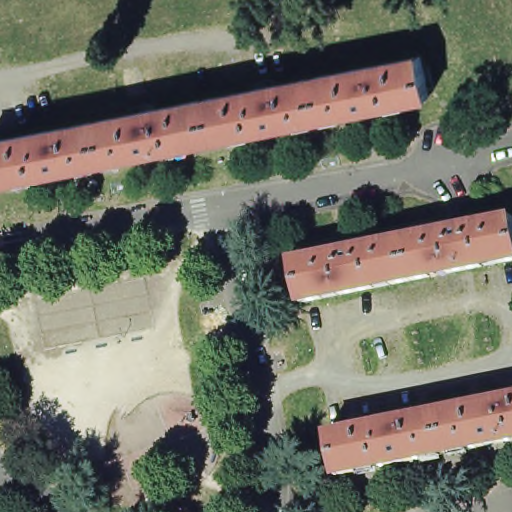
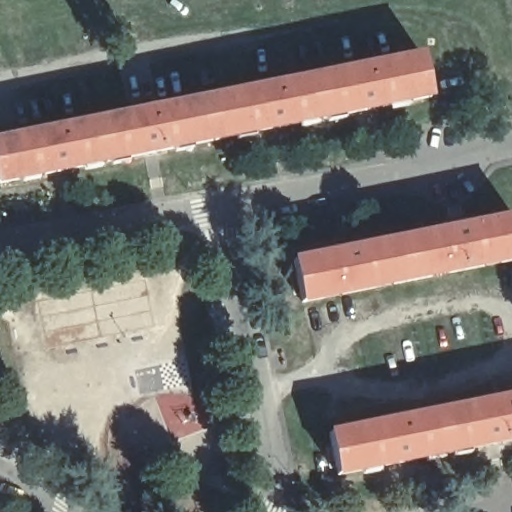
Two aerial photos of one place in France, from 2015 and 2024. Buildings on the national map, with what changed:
unchanged [(0,182),(0,140),(424,56),(430,97),(0,182)]
unchanged [(292,262),(337,253),(338,249),(353,246),(355,249),(446,230),(446,227),(464,224),(465,227),(511,219),(512,221),(512,260),(298,302),(292,262)]
unchanged [(328,432),(512,395),(512,438),(335,473),(328,432)]

